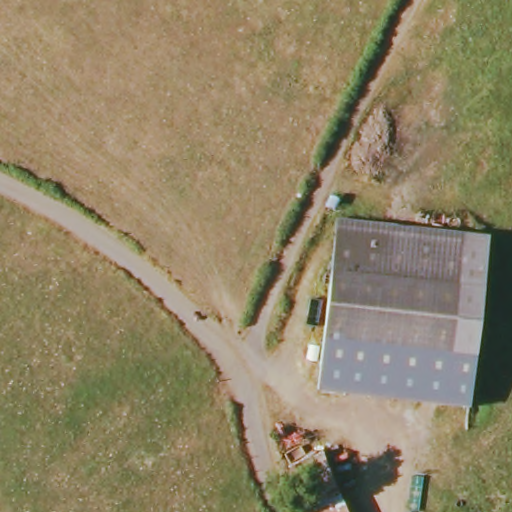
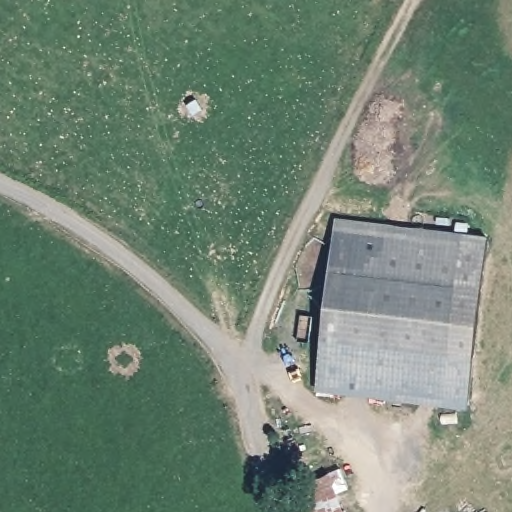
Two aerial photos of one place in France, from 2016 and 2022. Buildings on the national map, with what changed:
unchanged [(337,219),(487,237),(469,410),(312,391),(337,219)]
unchanged [(299,404),(341,512),(300,512),(265,418),(299,404)]

